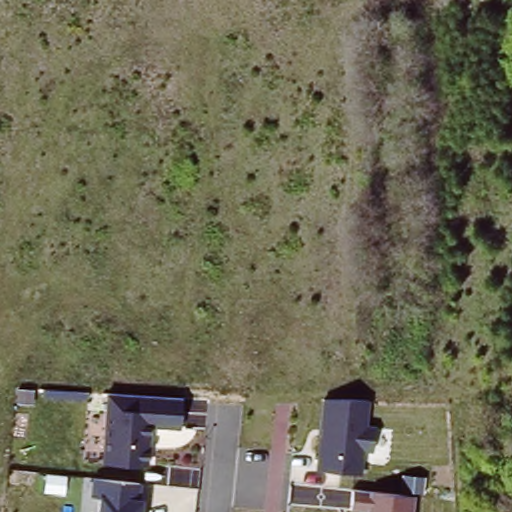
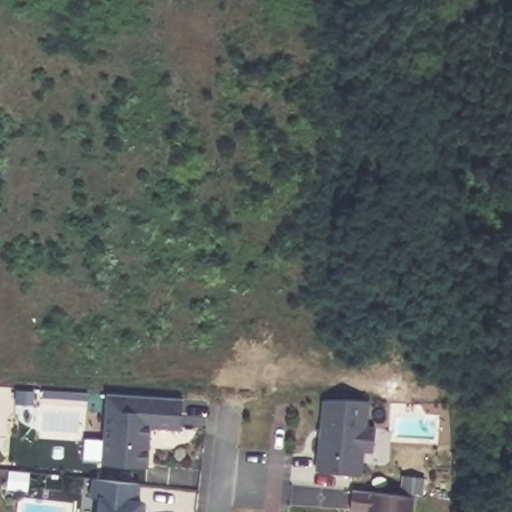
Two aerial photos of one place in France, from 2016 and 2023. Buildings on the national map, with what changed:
unchanged [(98,463),(103,392),(182,398),(179,428),(149,427),(145,467),(98,463)]
unchanged [(322,395),(368,401),(365,426),(374,427),(372,453),(364,453),(362,475),(315,470),(322,395)]
unchanged [(139,481),(137,501),(141,502),(140,512),(96,512),(100,477),(139,481)]
unchanged [(349,510),(351,487),(413,494),(412,512),(364,512),(365,511),(349,510)]

